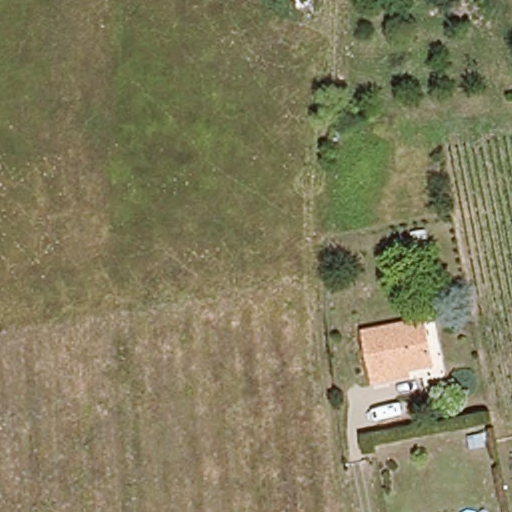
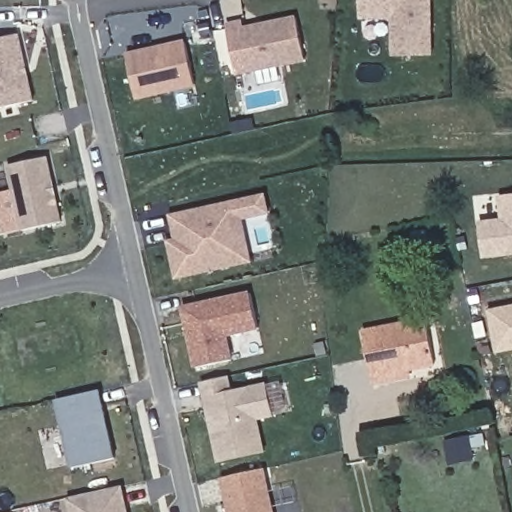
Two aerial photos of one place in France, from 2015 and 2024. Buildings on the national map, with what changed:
new [(390,57),(390,19),(359,20),(359,0),(427,0),(428,57),(390,57)]
new [(246,25),(247,31),(300,20),(309,60),(241,75),(231,29),(246,25)]
new [(22,35),(37,102),(0,110),(0,40),(22,35)]
new [(190,44),(200,87),(141,100),(131,57),(190,44)]
new [(51,158),(65,223),(26,231),(12,166),(51,158)]
new [(480,221),(502,219),(498,196),(512,194),(512,256),(485,259),(480,221)]
new [(231,268),(181,279),(174,243),(181,241),(176,217),(268,197),(272,214),(246,220),(252,248),(255,263),(231,268)]
new [(255,293),(262,328),(230,335),(236,360),(201,368),(188,309),(255,293)]
new [(487,310),(512,305),(512,351),(496,354),(487,310)]
unchanged [(385,382),(370,384),(360,332),(424,320),(432,363),(406,368),(407,378),(385,382)]
new [(232,377),(235,392),(269,384),(276,415),(260,419),(267,451),(224,461),(206,383),(232,377)]
new [(104,391),(119,459),(76,469),(61,401),(104,391)]
new [(277,512),(234,512),(226,479),(267,470),(277,512)]
new [(130,512),(75,512),(72,499),(125,487),(130,512)]

